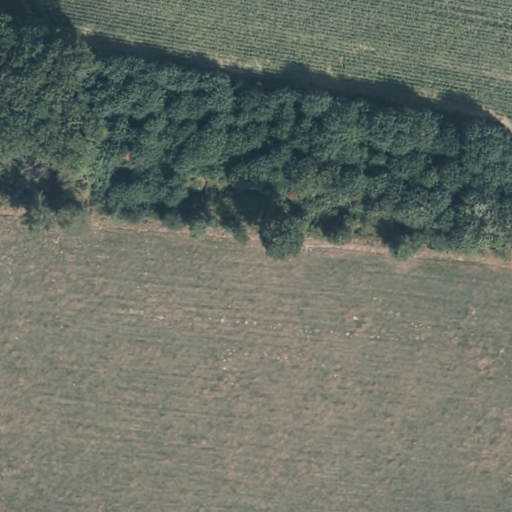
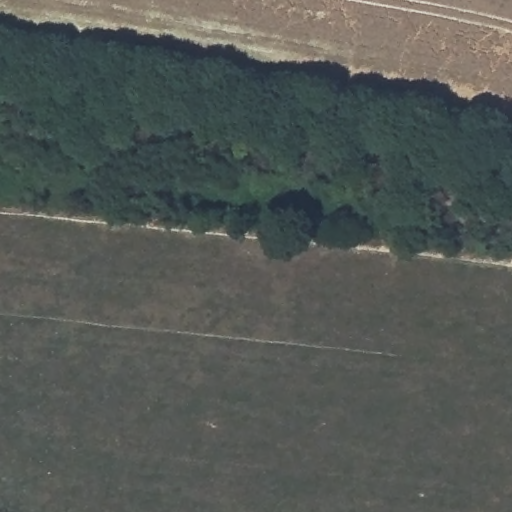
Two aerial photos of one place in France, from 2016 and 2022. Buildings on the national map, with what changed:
[]

